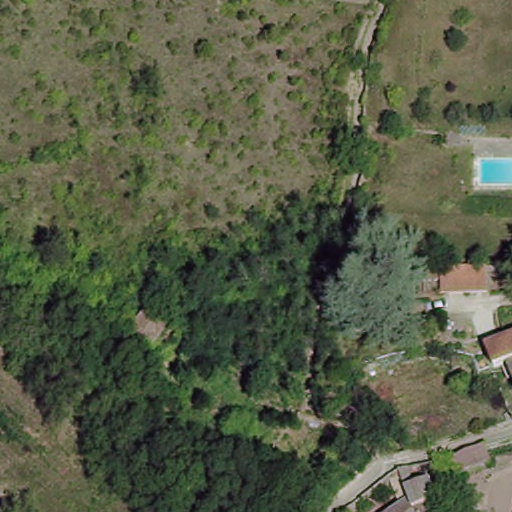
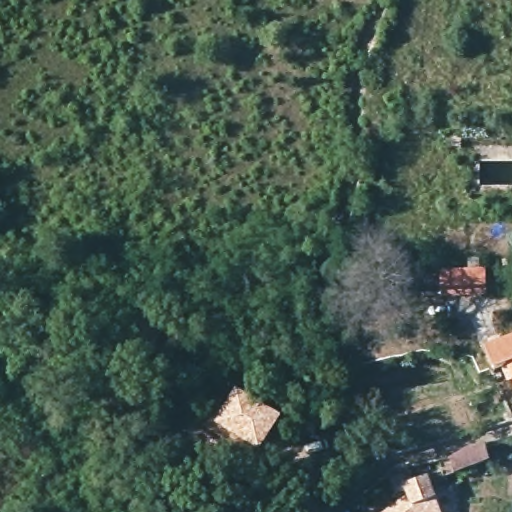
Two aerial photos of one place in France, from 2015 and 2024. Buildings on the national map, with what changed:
unchanged [(440,301),(440,288),(417,290),(416,277),(439,275),(483,272),(485,297),(440,301)]
unchanged [(192,341),(190,347),(184,353),(165,347),(152,362),(120,337),(137,315),(167,339),(170,339),(178,330),(192,341)]
unchanged [(512,331),(512,384),(510,385),(493,352),(478,357),(471,337),(507,321),(512,331)]
unchanged [(502,411),(478,357),(493,352),(510,385),(512,384),(512,406),(507,410),(502,411)]
new [(240,392),(280,420),(260,450),(220,422),(240,392)]
unchanged [(453,457),(458,453),(487,444),(492,459),(455,469),(453,457)]
unchanged [(400,491),(432,482),(440,512),(386,512),(402,502),(400,491)]

